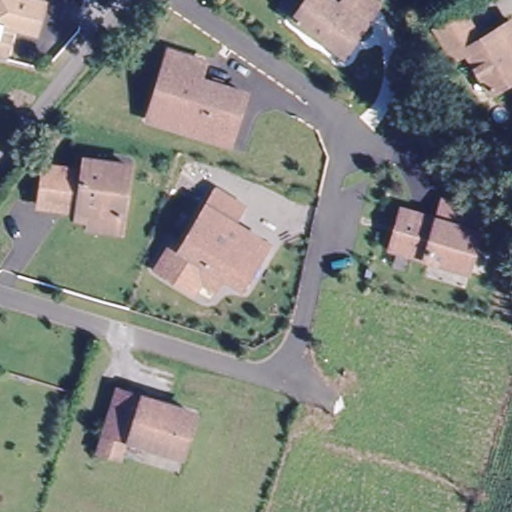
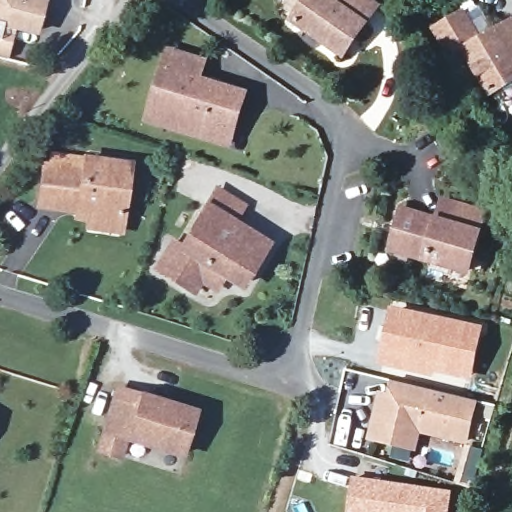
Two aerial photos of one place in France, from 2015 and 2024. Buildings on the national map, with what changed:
unchanged [(34,32),(12,27),(5,60),(0,59),(0,0),(28,0),(41,3),(34,32)]
unchanged [(307,0),(336,0),(338,1),(340,0),(372,0),(378,4),(343,53),(294,17),(307,0)]
unchanged [(461,47),(449,55),(432,27),(458,12),(475,40),(509,20),(512,25),(512,57),(512,76),(487,90),(461,47)]
unchanged [(149,115),(152,104),(167,49),(207,60),(201,78),(243,92),(232,130),(228,141),(149,115)]
unchanged [(85,230),(86,212),(38,206),(43,168),(79,173),(79,164),(125,169),(120,217),(118,233),(85,230)]
unchanged [(206,276),(199,288),(161,266),(177,240),(186,246),(222,186),(246,203),(236,219),(269,239),(244,281),(229,272),(220,285),(206,276)]
unchanged [(473,273),(395,254),(404,211),(424,216),(428,194),(458,201),(487,209),(473,273)]
new [(390,305),(483,325),(472,380),(435,372),(434,377),(377,365),(390,305)]
new [(477,401),(467,444),(419,434),(415,451),(367,440),(378,391),(386,392),(389,379),(477,401)]
unchanged [(95,457),(115,396),(187,419),(174,460),(123,444),(117,464),(95,457)]
new [(452,491),(449,512),(347,512),(352,476),(452,491)]

